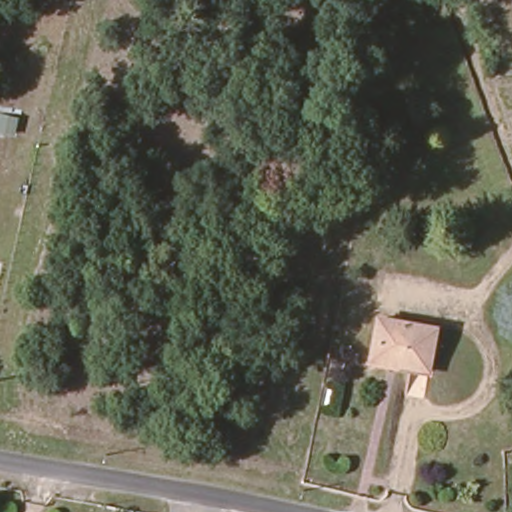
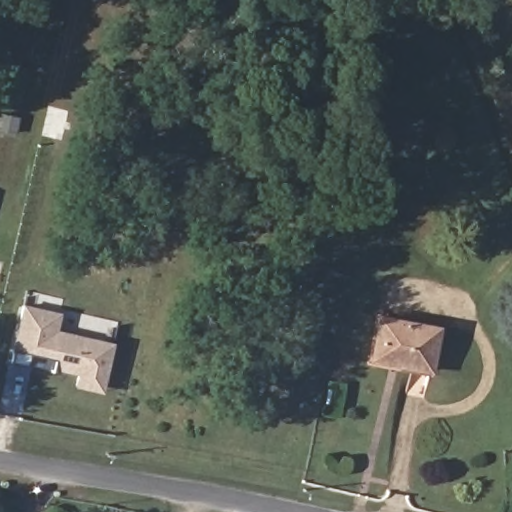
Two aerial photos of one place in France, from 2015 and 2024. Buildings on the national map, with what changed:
new [(22,309),(62,316),(59,334),(117,345),(109,388),(77,382),(78,375),(53,370),(55,361),(31,357),(29,368),(11,365),(22,309)]
unchanged [(437,331),(431,372),(375,363),(382,321),(437,331)]

